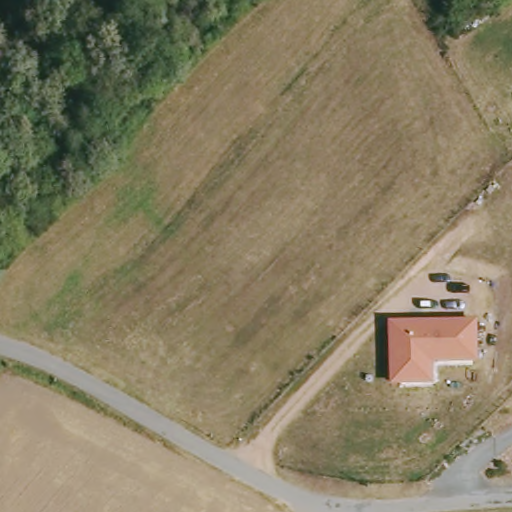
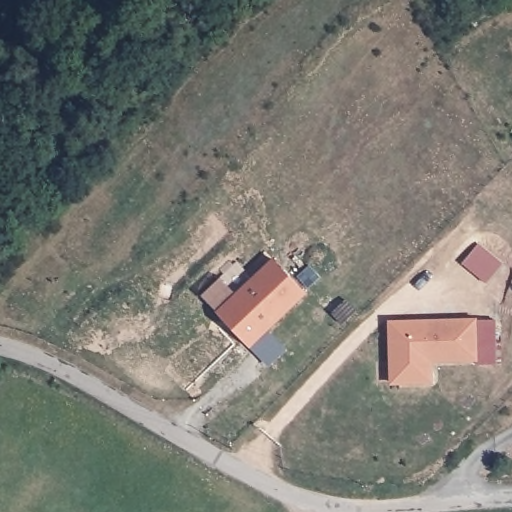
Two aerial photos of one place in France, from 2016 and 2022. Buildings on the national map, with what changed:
new [(251,348),(218,313),(273,259),(309,296),(251,348)]
unchanged [(390,387),(389,323),(478,320),(479,364),(433,366),(432,386),(390,387)]

